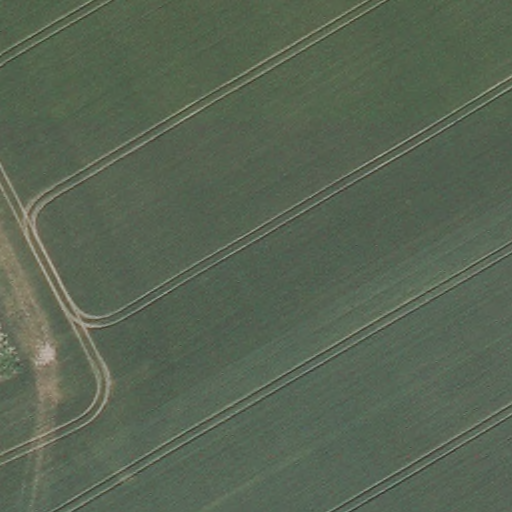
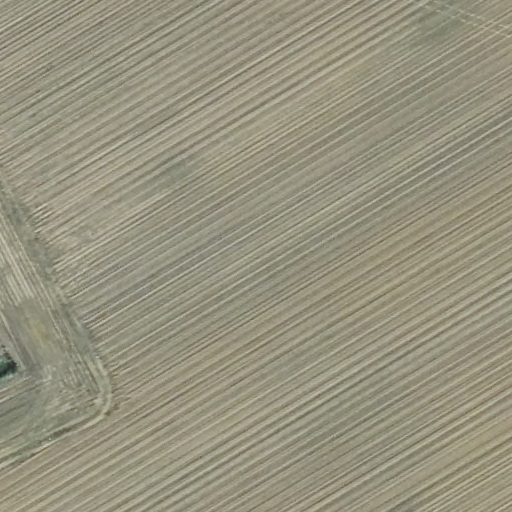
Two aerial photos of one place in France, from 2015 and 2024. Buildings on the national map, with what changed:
[]

